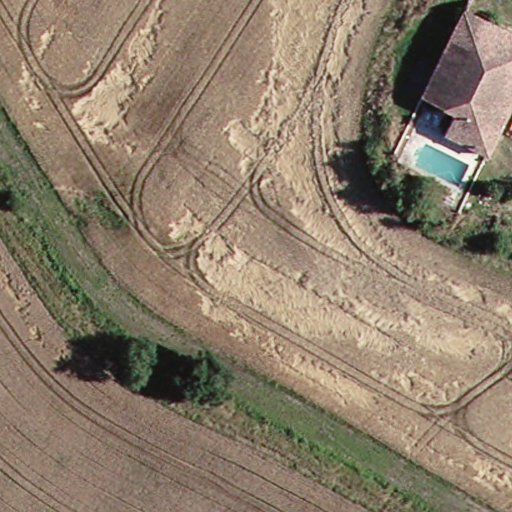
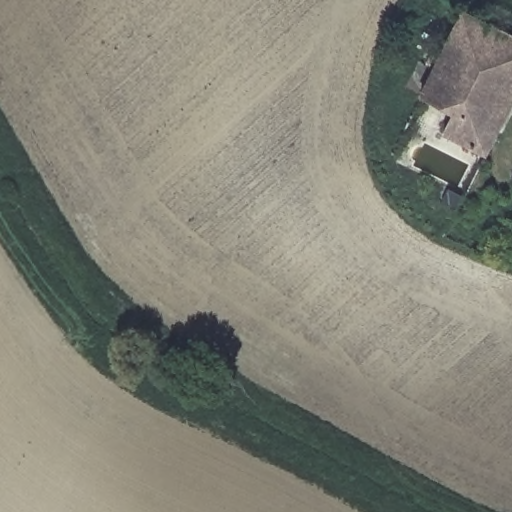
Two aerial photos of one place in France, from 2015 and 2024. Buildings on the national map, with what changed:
unchanged [(477,122),(493,132),(486,149),(442,131),(445,117),(411,97),(456,9),(512,36),(512,54),(511,53),(477,122)]
unchanged [(477,122),(511,53),(512,54),(512,94),(493,132),(477,122)]

